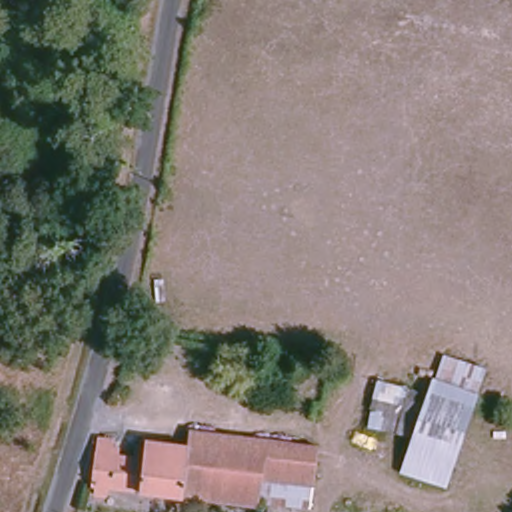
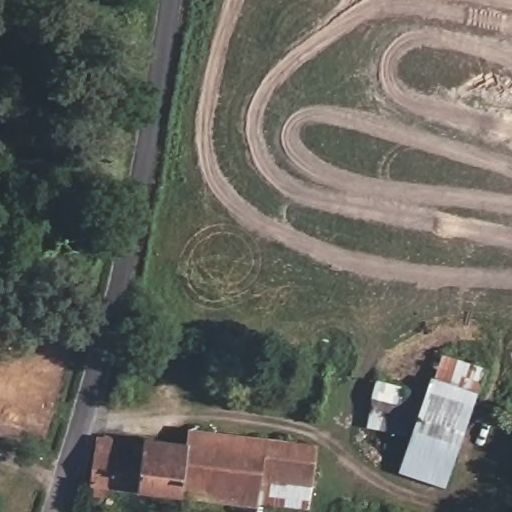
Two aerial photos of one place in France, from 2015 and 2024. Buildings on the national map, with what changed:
unchanged [(400,472),(410,437),(369,425),(375,380),(425,392),(444,355),(486,369),(444,487),(400,472)]
unchanged [(104,454),(147,458),(147,442),(199,447),(199,430),(313,447),(313,482),(269,477),(264,509),(99,486),(104,454)]

